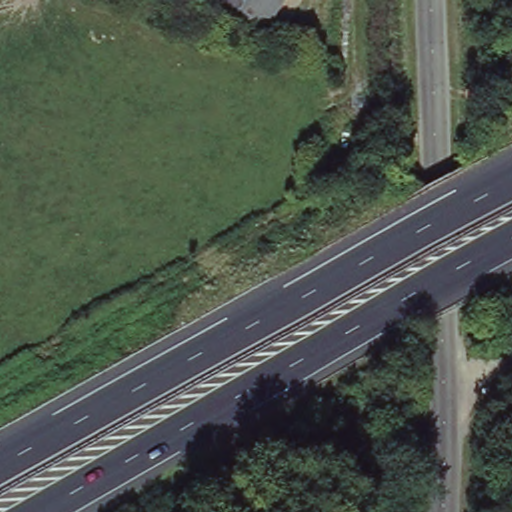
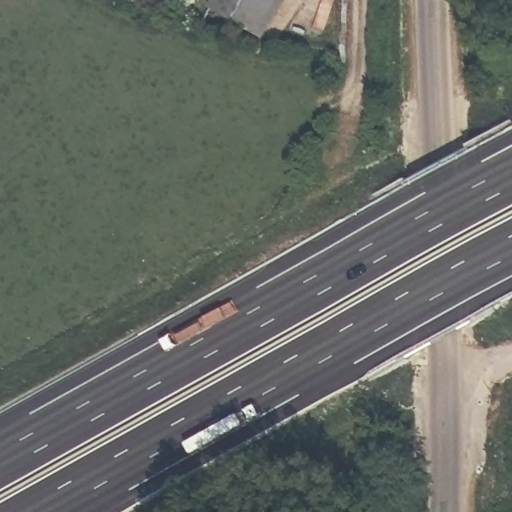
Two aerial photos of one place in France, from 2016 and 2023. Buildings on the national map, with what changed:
unchanged [(208,2),(209,0),(282,0),(262,35),(208,2)]

